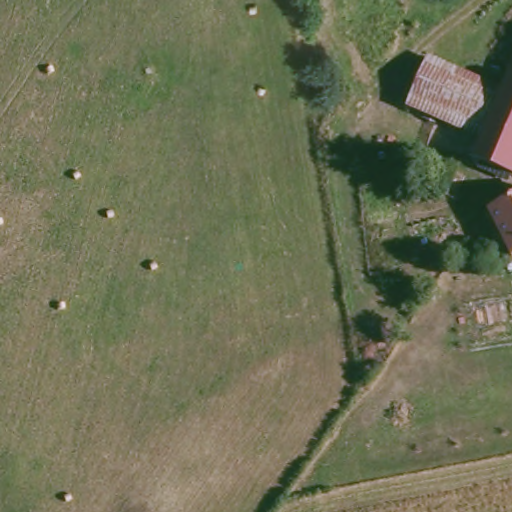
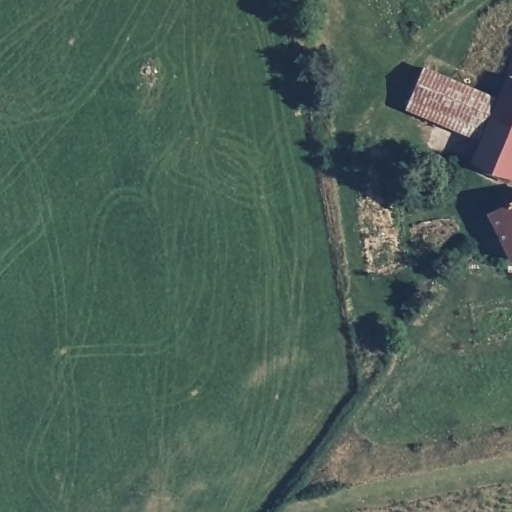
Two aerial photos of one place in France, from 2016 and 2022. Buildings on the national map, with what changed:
unchanged [(481,140),(500,92),(504,83),(496,79),(498,73),(505,75),(512,56),(512,177),(473,161),(481,140)]
unchanged [(481,140),(406,108),(424,61),(500,92),(481,140)]
unchanged [(512,259),(510,260),(488,213),(512,202),(512,259)]

